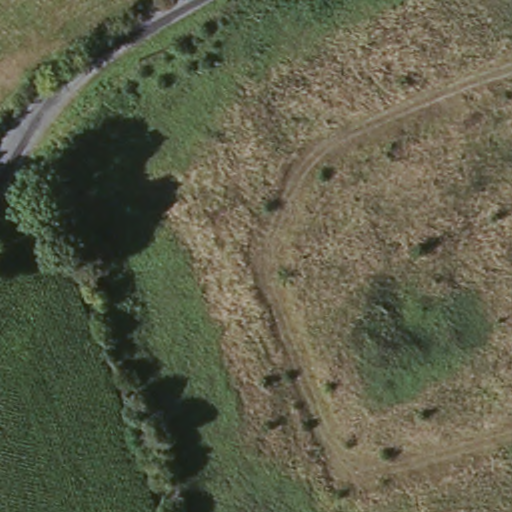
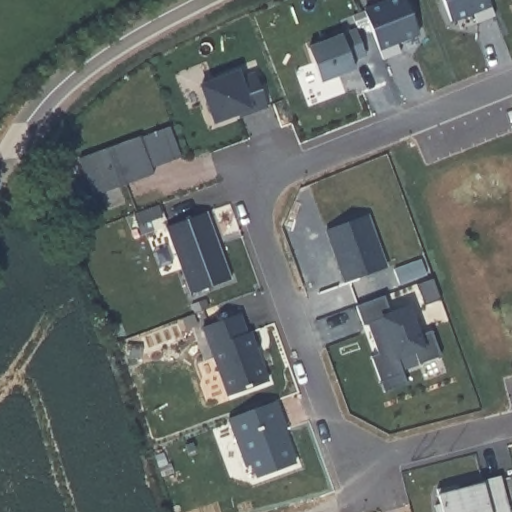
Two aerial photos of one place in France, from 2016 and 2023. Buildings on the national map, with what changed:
new [(455,26),(444,0),(491,0),(494,10),(455,26)]
new [(422,38),(383,54),(369,20),(409,3),(422,38)]
new [(354,33),(363,59),(349,64),(352,72),(319,85),(307,52),(354,33)]
new [(235,76),(238,83),(253,77),(264,110),(249,115),(247,110),(237,115),(238,116),(212,126),(199,89),(235,76)]
new [(136,140),(136,142),(166,131),(177,161),(148,173),(150,179),(89,201),(74,164),(136,140)]
new [(164,230),(204,216),(229,283),(189,297),(164,230)]
new [(324,234),(365,218),(384,272),(344,286),(324,234)]
new [(370,361),(377,358),(367,328),(362,330),(354,310),(383,300),(390,320),(408,312),(417,340),(431,335),(439,360),(418,368),(413,355),(396,361),(402,378),(379,386),(370,361)]
new [(202,331),(238,318),(245,338),(249,337),(266,386),(228,400),(202,331)]
new [(250,469),(244,471),(228,423),(274,405),(279,423),(278,424),(293,468),(256,482),(250,469)]
new [(435,511),(440,510),(436,495),(457,489),(458,493),(481,488),(480,485),(500,480),(507,512),(435,512),(435,511)]

